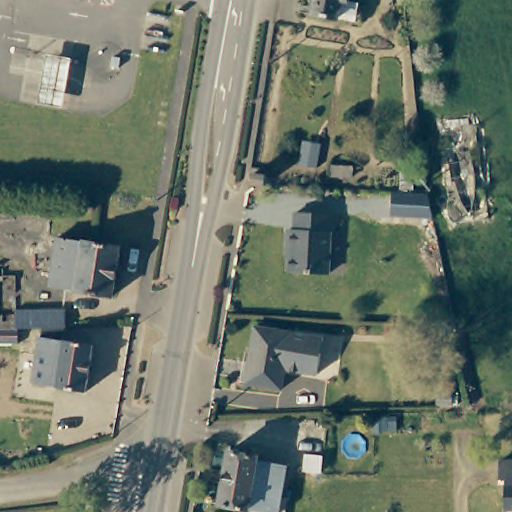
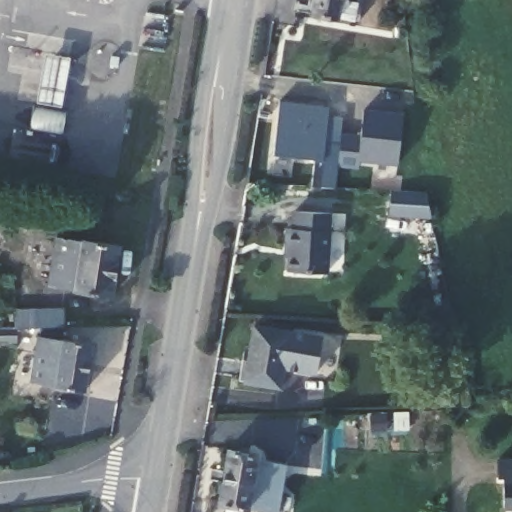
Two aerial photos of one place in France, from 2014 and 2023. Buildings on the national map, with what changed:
unchanged [(318,0),(354,0),(353,2),(345,1),(341,20),(315,16),(318,0)]
unchanged [(72,56),(61,112),(37,105),(49,50),(72,56)]
new [(280,100),(329,105),(328,115),(344,116),(343,131),(360,132),(364,109),(403,112),(398,167),(359,162),(359,171),(336,169),(338,144),(326,142),(324,161),(273,156),(280,100)]
demolished [(263,176),(261,184),(249,182),(250,174),(263,176)]
unchanged [(431,195),(429,219),(395,217),(397,193),(431,195)]
unchanged [(330,215),(326,275),(291,272),(293,251),(288,250),(290,232),(295,232),(295,212),(330,215)]
unchanged [(93,239),(120,245),(109,293),(49,282),(54,232),(74,235),(93,239)]
unchanged [(38,309),(65,310),(65,327),(37,327),(38,309)]
unchanged [(255,325),(323,337),(316,373),(284,367),(281,388),(245,382),(255,325)]
unchanged [(39,335),(91,345),(82,394),(39,386),(31,383),(39,335)]
demolished [(316,418),(316,440),(277,439),(278,428),(252,428),(251,418),(316,418)]
unchanged [(214,501),(224,447),(253,452),(249,472),(242,506),(214,501)]
unchanged [(512,509),(501,509),(501,477),(482,477),(482,454),(512,454),(512,509)]
unchanged [(278,512),(269,512),(242,506),(249,472),(251,460),(287,467),(278,512)]

